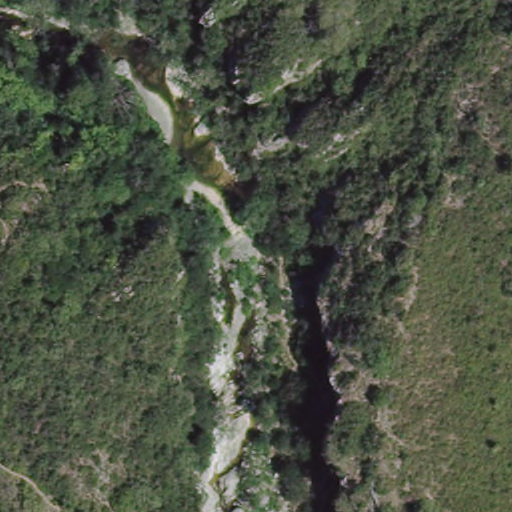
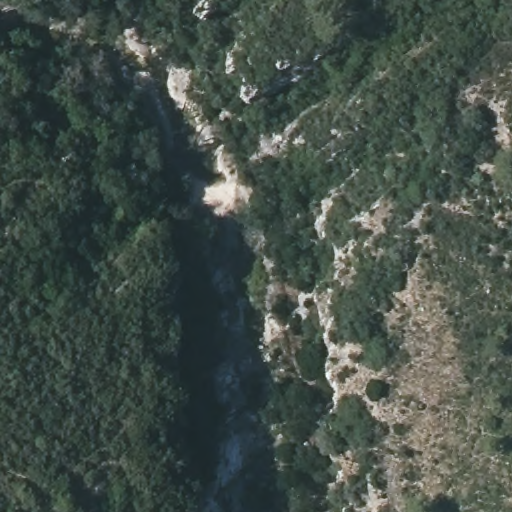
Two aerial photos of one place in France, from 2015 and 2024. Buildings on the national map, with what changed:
[]

